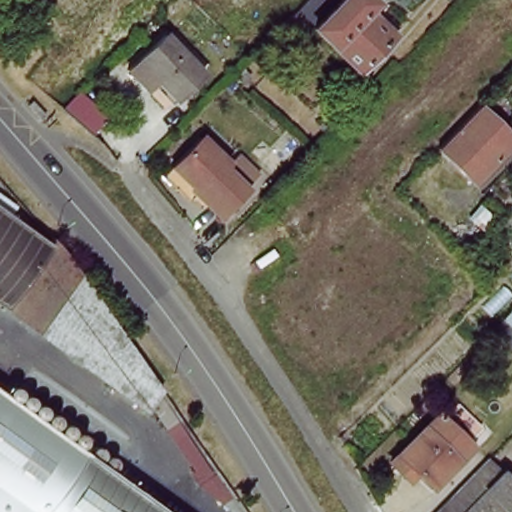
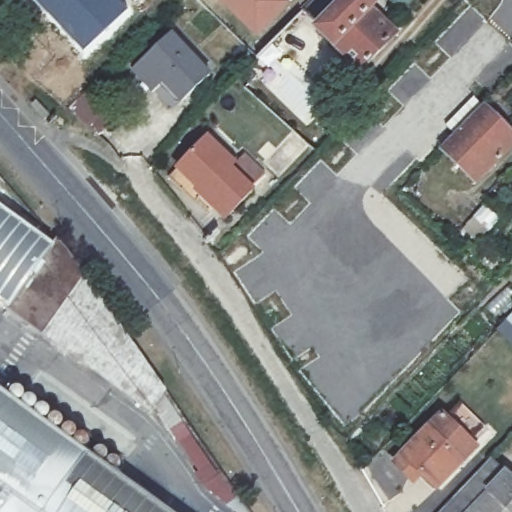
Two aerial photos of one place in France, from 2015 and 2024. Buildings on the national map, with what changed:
new [(128,11),(83,55),(32,0),(118,0),(128,11)]
new [(287,4),(257,35),(221,0),(283,0),(287,4)]
unchanged [(325,31),(308,15),(322,0),(354,0),(325,31)]
unchanged [(354,0),(377,0),(383,6),(380,11),(404,35),(368,74),(325,31),(354,0)]
unchanged [(212,79),(185,105),(165,85),(155,95),(135,75),(172,39),(212,79)]
unchanged [(242,75),(252,65),(260,72),(250,82),(242,75)]
unchanged [(487,105),(512,129),(512,153),(483,183),(445,148),(487,105)]
unchanged [(173,175),(183,165),(209,138),(236,165),(245,155),(267,175),(255,189),(258,193),(230,221),(203,195),(200,200),(173,175)]
unchanged [(403,187),(424,165),(436,177),(415,199),(403,187)]
unchanged [(0,203),(0,187),(15,198),(7,209),(48,239),(53,230),(62,240),(161,380),(150,398),(146,404),(0,297),(0,203)]
unchanged [(511,318),(512,319),(512,354),(494,336),(503,326),(511,318)]
unchanged [(247,502),(253,512),(246,512),(201,475),(203,472),(150,398),(161,380),(247,502)]
unchanged [(160,512),(0,512),(0,395),(160,512)]
unchanged [(447,413),(480,445),(474,451),(442,486),(427,472),(419,480),(401,462),(442,419),(447,413)]
unchanged [(445,512),(496,456),(512,470),(512,512),(445,512)]

